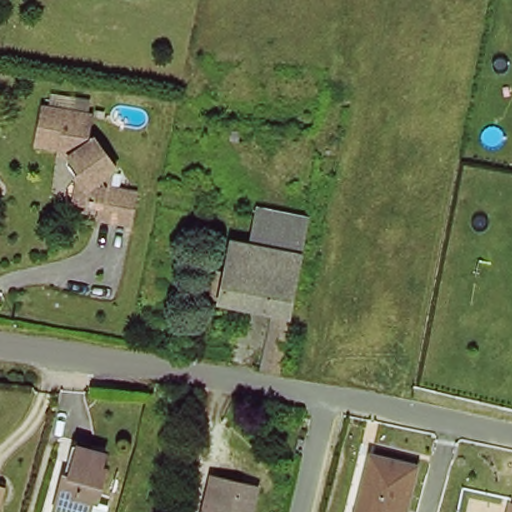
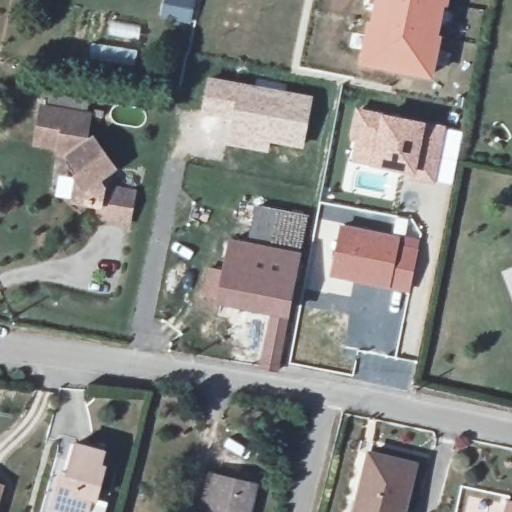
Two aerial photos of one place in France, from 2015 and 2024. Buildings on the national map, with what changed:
new [(362,40),(372,6),(372,0),(448,0),(442,21),(433,79),(358,63),(362,40)]
new [(207,75),(314,95),(303,149),(271,143),(268,154),(225,144),(230,119),(200,112),(207,75)]
unchanged [(80,176),(78,173),(82,170),(72,155),(62,153),(63,147),(39,142),(45,104),(93,113),(90,133),(94,139),(97,136),(118,167),(102,179),(107,186),(138,192),(133,223),(101,217),(103,206),(92,203),(75,200),(80,176)]
new [(452,185),(437,184),(405,179),(407,163),(384,158),(382,168),(349,161),(353,139),(347,138),(354,106),(417,118),(448,126),(463,130),(452,185)]
unchanged [(282,362),(264,359),(272,314),(224,302),(210,299),(215,270),(230,273),(235,240),(247,243),(255,207),(303,217),(295,254),(302,256),(282,362)]
new [(339,222),(420,238),(410,293),(327,276),(339,222)]
unchanged [(108,445),(105,460),(110,462),(100,498),(90,495),(90,508),(54,499),(63,461),(72,463),(77,439),(108,445)]
unchanged [(405,512),(357,512),(370,454),(415,463),(405,512)]
unchanged [(215,470),(262,483),(254,512),(204,512),(208,494),(215,470)]

